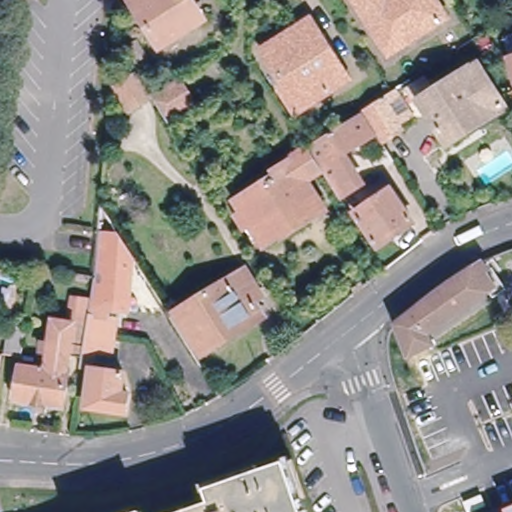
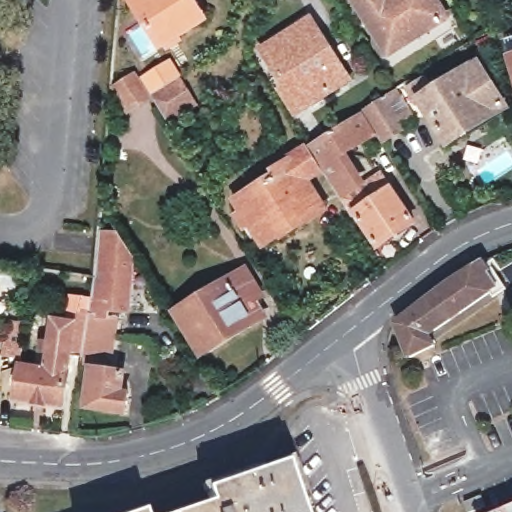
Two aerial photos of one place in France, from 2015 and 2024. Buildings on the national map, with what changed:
unchanged [(159,44),(134,0),(189,0),(185,2),(196,23),(159,44)]
unchanged [(394,0),(431,0),(431,1),(445,22),(440,25),(388,60),(348,0),(385,0),(387,4),(394,0)]
unchanged [(283,89),(288,86),(264,51),(307,21),(321,42),(333,59),(345,76),(302,106),(297,110),(283,89)]
unchanged [(134,37),(144,54),(133,62),(122,45),(134,37)]
unchanged [(510,45),(512,45),(512,52),(510,45)]
unchanged [(506,112),(450,147),(420,98),(415,101),(408,89),(425,79),(432,91),(476,64),(506,112)]
unchanged [(105,90),(140,69),(149,90),(180,73),(196,104),(164,124),(152,105),(124,120),(105,90)]
unchanged [(380,96),(392,89),(408,114),(396,121),(397,123),(380,134),(363,107),(380,96)]
unchanged [(310,142),(309,141),(360,109),(372,129),(341,149),(358,176),(340,188),(322,162),(310,142)]
unchanged [(240,216),(248,211),(241,201),(279,176),(276,171),(294,159),(291,155),(310,142),(322,162),(303,174),(322,203),(282,230),(280,227),(265,237),(254,219),(246,224),(240,216)]
unchanged [(387,180),(390,177),(415,215),(377,239),(355,205),(366,197),(360,187),(382,173),(387,180)]
unchanged [(90,338),(95,288),(102,218),(132,264),(128,320),(110,318),(110,323),(119,324),(111,377),(129,379),(127,397),(135,397),(133,418),(95,414),(97,376),(87,375),(88,367),(90,338)]
unchanged [(496,287),(423,331),(430,343),(411,352),(397,318),(451,277),(483,258),(496,287)]
unchanged [(259,298),(252,302),(262,317),(204,355),(177,314),(242,272),(259,298)]
unchanged [(21,364),(4,361),(8,328),(25,331),(21,364)]
unchanged [(88,367),(74,365),(71,381),(47,378),(50,361),(41,360),(42,352),(50,353),(54,329),(77,332),(77,336),(90,338),(88,367)]
unchanged [(74,381),(70,416),(15,408),(20,374),(47,378),(71,381),(74,381)]
unchanged [(505,512),(512,509),(512,512),(505,512)]

